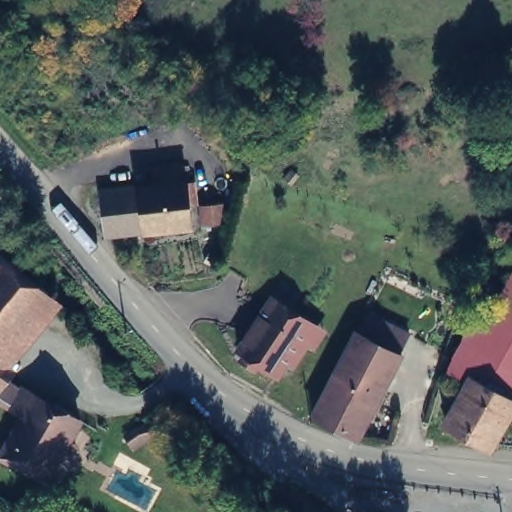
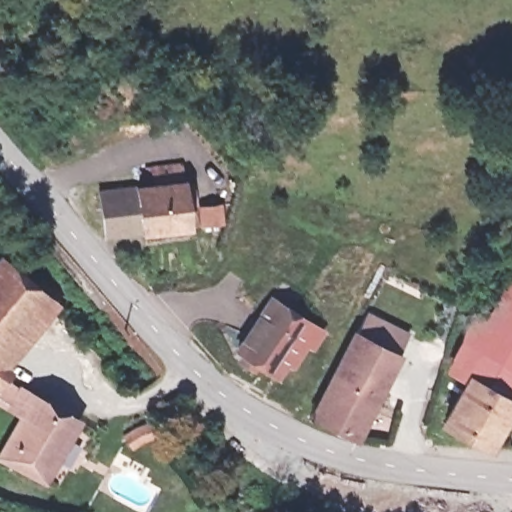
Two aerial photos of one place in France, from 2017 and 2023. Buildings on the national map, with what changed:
unchanged [(80,194),(162,179),(162,166),(192,161),(195,185),(201,186),(202,194),(198,195),(201,220),(119,237),(80,194)]
unchanged [(222,200),(222,219),(215,220),(206,220),(205,202),(217,200),(222,200)]
unchanged [(0,355),(0,262),(7,254),(54,290),(0,355)]
unchanged [(454,365),(474,311),(487,319),(512,277),(512,393),(473,370),(470,375),(454,365)]
unchanged [(319,343),(308,359),(293,349),(269,387),(229,361),(263,307),(303,333),(319,343)]
unchanged [(361,325),(369,312),(370,309),(411,333),(410,335),(402,349),(354,436),(310,413),(361,325)]
unchanged [(10,441),(0,435),(0,431),(4,424),(0,421),(0,368),(12,375),(2,390),(19,398),(27,384),(85,415),(53,476),(5,453),(10,441)]
unchanged [(449,417),(471,376),(470,375),(473,370),(512,393),(512,404),(489,442),(487,441),(449,417)]

